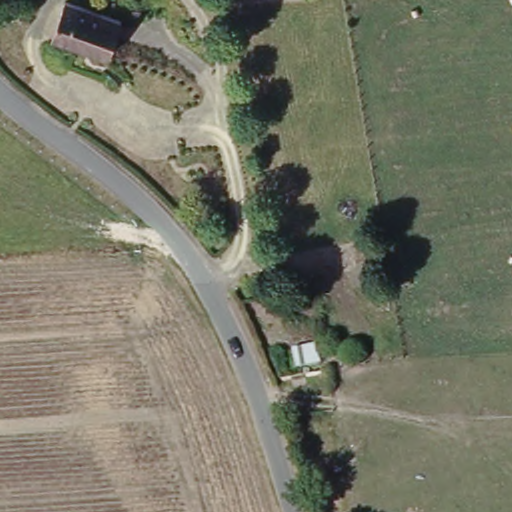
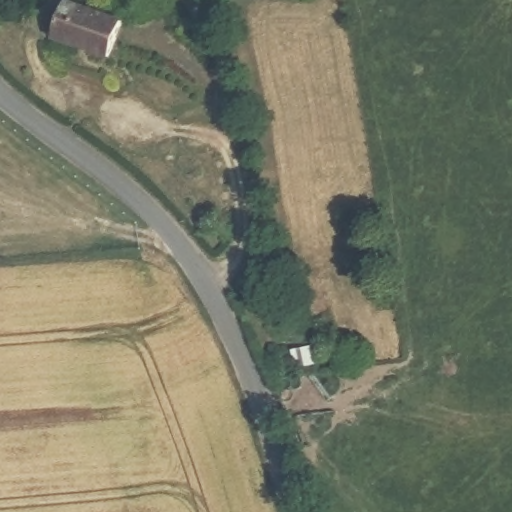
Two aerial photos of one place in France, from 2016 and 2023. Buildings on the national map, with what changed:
unchanged [(124,30),(112,66),(55,47),(66,10),(124,30)]
unchanged [(295,357),(322,350),(323,369),(296,371),(295,357)]

